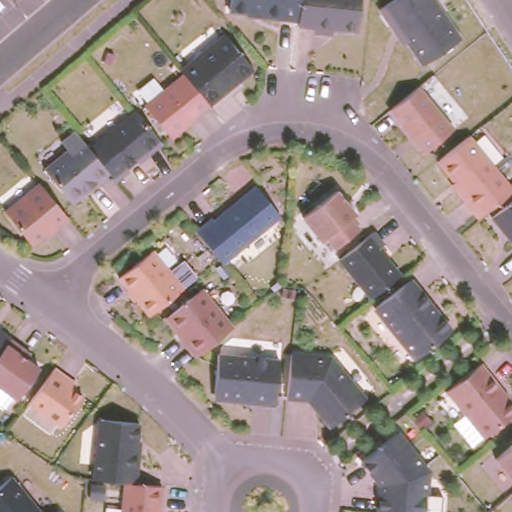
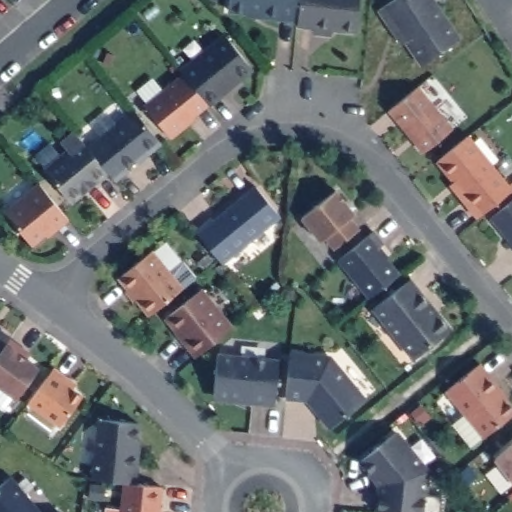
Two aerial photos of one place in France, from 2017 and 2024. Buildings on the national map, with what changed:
unchanged [(229,0),(357,0),(355,35),(297,31),(298,25),(243,19),(243,15),(228,14),(229,0)]
unchanged [(393,0),(436,0),(462,37),(418,66),(409,54),(377,9),(393,0)]
unchanged [(144,105),(183,75),(181,72),(226,39),(253,72),(171,140),(144,105)]
unchanged [(451,129),(419,153),(386,114),(419,89),(451,129)]
unchanged [(57,187),(60,184),(45,170),(67,153),(57,143),(72,133),(87,149),(139,111),(163,144),(114,183),(108,176),(71,204),(57,187)]
unchanged [(511,189),(472,219),(447,188),(451,185),(433,162),(469,138),(511,189)]
unchanged [(253,184),(281,218),(222,264),(194,233),(253,184)]
unchanged [(3,215),(39,187),(70,220),(32,248),(3,215)]
unchanged [(336,192),(353,214),(348,217),(359,230),(332,250),(322,236),(318,240),(301,218),(336,192)]
unchanged [(512,203),(512,248),(489,220),(512,203)]
unchanged [(371,238),(396,273),(363,296),(335,261),(371,238)]
unchanged [(114,280),(153,250),(181,288),(145,314),(114,280)]
unchanged [(412,281),(449,330),(409,359),(371,309),(412,281)]
unchanged [(161,318),(199,291),(228,330),(194,358),(161,318)]
unchanged [(10,339),(9,341),(38,365),(14,399),(0,390),(0,332),(10,339)]
unchanged [(213,403),(215,355),(276,359),(273,406),(213,403)]
unchanged [(306,401),(287,400),(291,356),(329,358),(364,400),(326,426),(306,401)]
unchanged [(512,407),(512,415),(478,438),(441,392),(480,365),(512,407)]
unchanged [(56,372),(75,386),(73,389),(83,397),(56,429),(25,404),(56,372)]
unchanged [(143,426),(136,483),(160,486),(158,512),(118,512),(121,482),(91,479),(97,420),(143,426)]
unchanged [(356,462),(394,435),(425,477),(425,512),(377,512),(377,486),(356,462)]
unchanged [(493,460),(512,447),(512,483),(493,460)]
unchanged [(0,512),(0,488),(11,480),(35,512),(0,512)]

